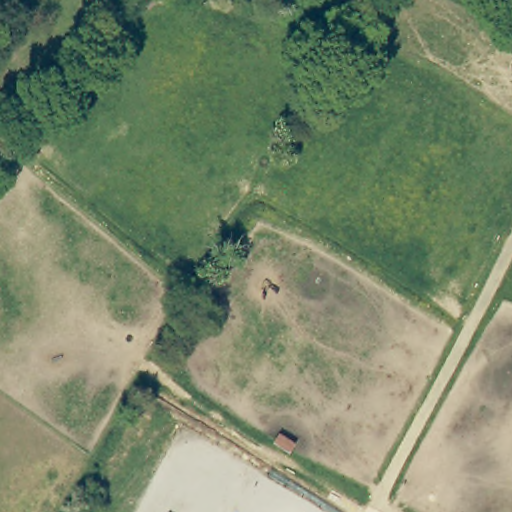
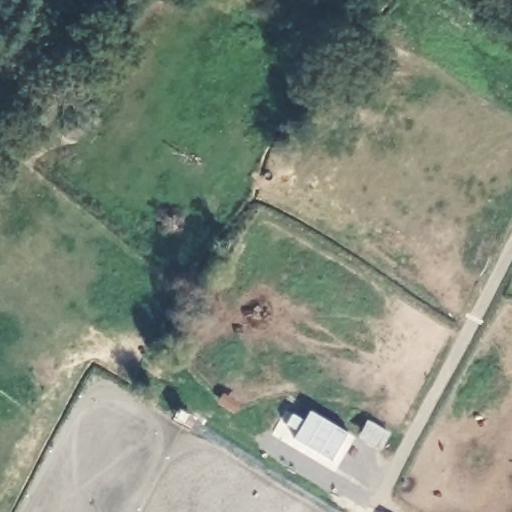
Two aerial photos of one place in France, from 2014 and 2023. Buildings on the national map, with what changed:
new [(309,410),(348,432),(331,460),(292,438),(309,410)]

